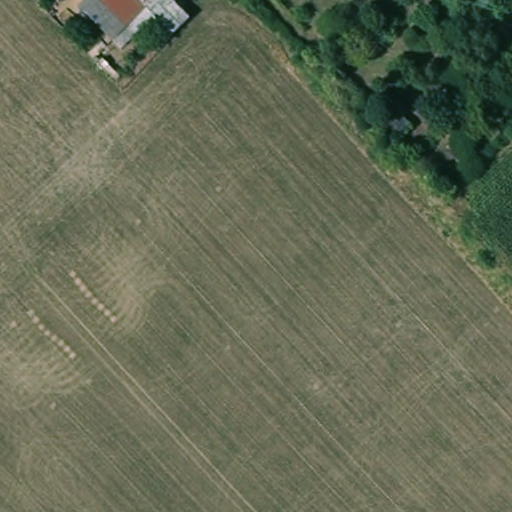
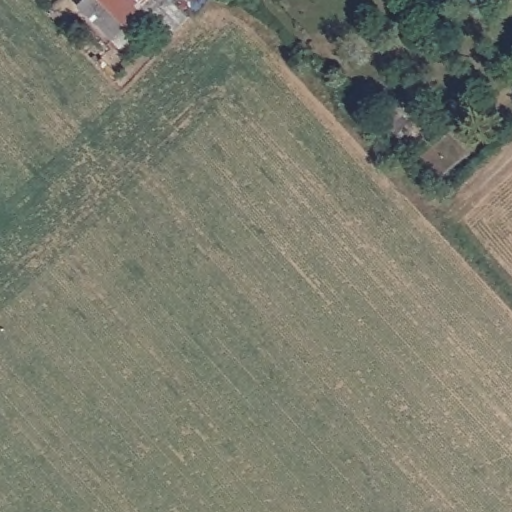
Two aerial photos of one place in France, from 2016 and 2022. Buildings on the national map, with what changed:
unchanged [(191,13),(166,42),(157,34),(165,25),(157,16),(124,49),(78,6),(84,0),(174,0),(191,13)]

